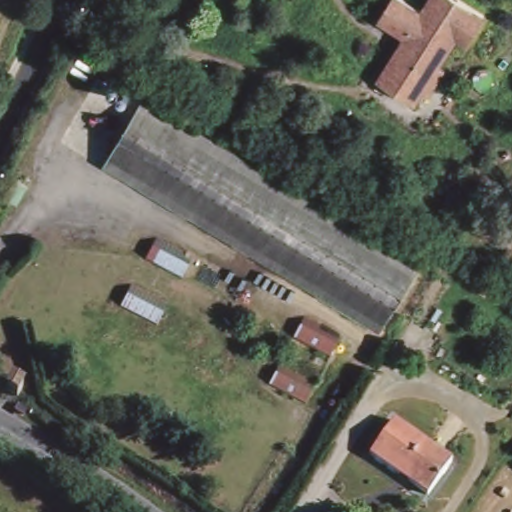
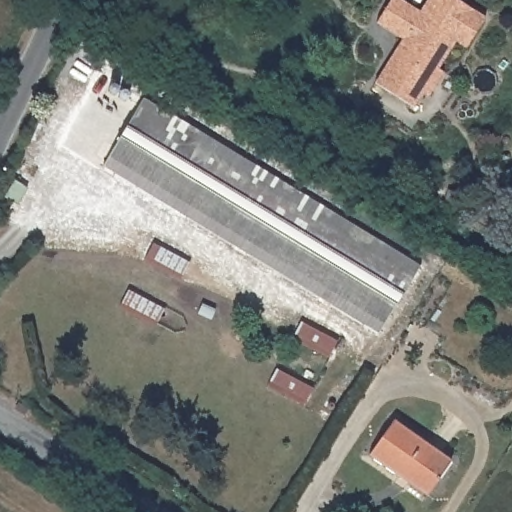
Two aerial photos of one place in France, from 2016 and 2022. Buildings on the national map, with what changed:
unchanged [(376,26),(393,0),(398,0),(418,12),(427,0),(458,0),(484,16),(465,44),(454,37),(434,65),(441,70),(426,92),(421,89),(409,106),(374,85),(403,42),(376,26)]
unchanged [(147,97),(418,267),(379,333),(105,163),(147,97)]
unchanged [(387,424),(449,463),(429,498),(366,460),(387,424)]

